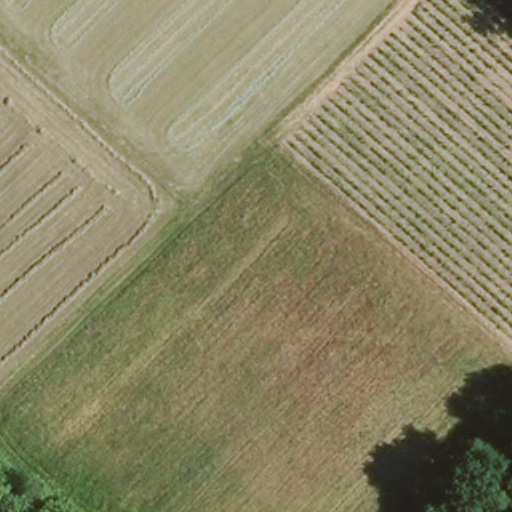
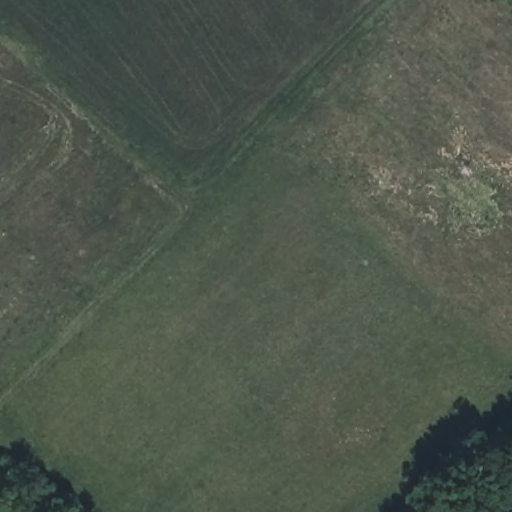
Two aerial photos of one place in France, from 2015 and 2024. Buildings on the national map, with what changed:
[]

